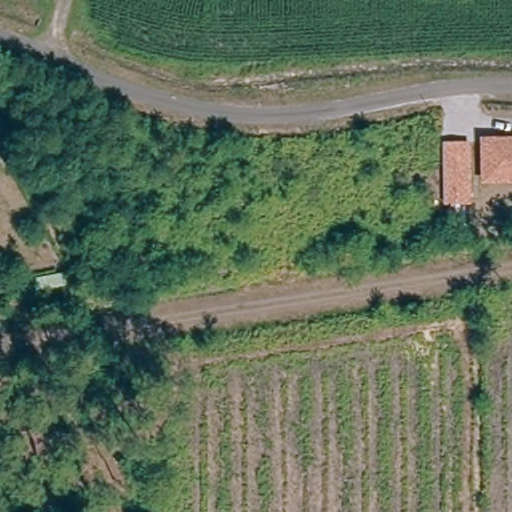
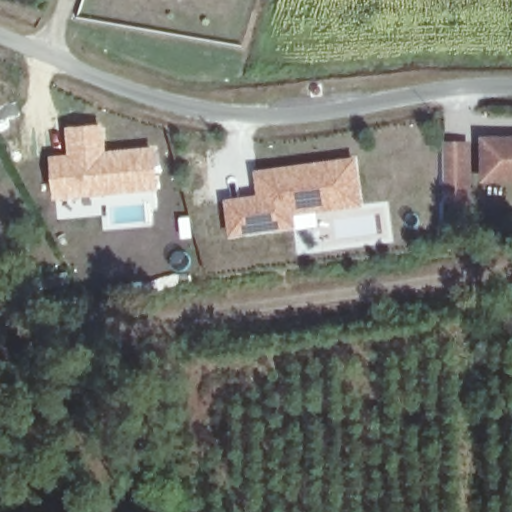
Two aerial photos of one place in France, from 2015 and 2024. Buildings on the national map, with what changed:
new [(65,153),(64,126),(104,123),(107,150),(155,145),(158,191),(52,200),(48,154),(65,153)]
unchanged [(512,137),(512,183),(479,182),(479,137),(512,137)]
unchanged [(471,142),(472,204),(443,204),(442,141),(471,142)]
new [(255,194),(252,169),(356,155),(363,207),(316,214),(318,227),(227,238),(222,199),(255,194)]

